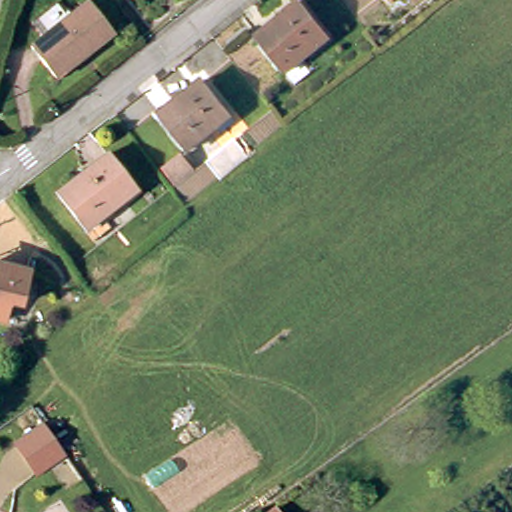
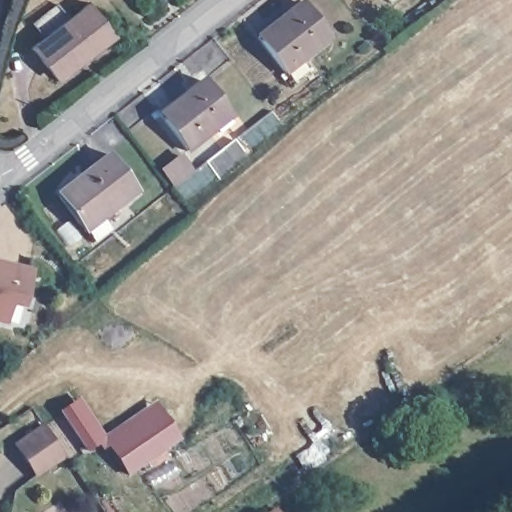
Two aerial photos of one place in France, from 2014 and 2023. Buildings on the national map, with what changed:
unchanged [(388,0),(397,0),(391,4),(388,0)]
unchanged [(58,79),(33,47),(87,3),(113,36),(58,79)]
unchanged [(286,74),(257,38),(303,3),(331,39),(286,74)]
unchanged [(223,138),(219,134),(188,157),(159,119),(204,85),(233,123),(237,127),(223,138)]
unchanged [(247,154),(219,176),(207,161),(235,139),(247,154)]
unchanged [(142,193),(91,233),(62,196),(113,155),(142,193)]
unchanged [(193,177),(175,192),(163,177),(181,162),(193,177)]
unchanged [(16,309),(3,306),(0,320),(0,269),(24,274),(16,309)]
new [(181,438),(128,474),(108,447),(101,452),(96,446),(88,452),(59,411),(79,397),(105,434),(154,401),(181,438)]
unchanged [(41,419),(67,453),(36,477),(9,443),(41,419)]

